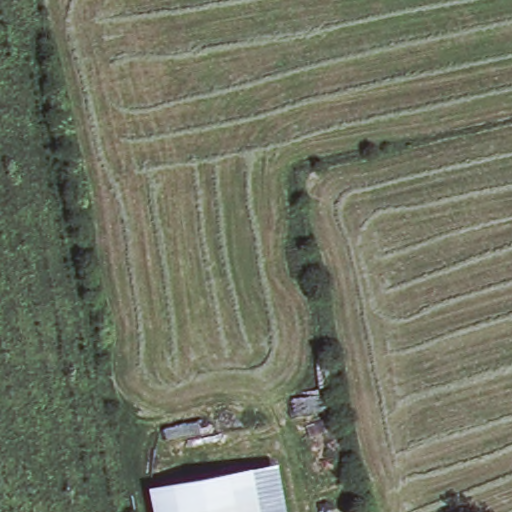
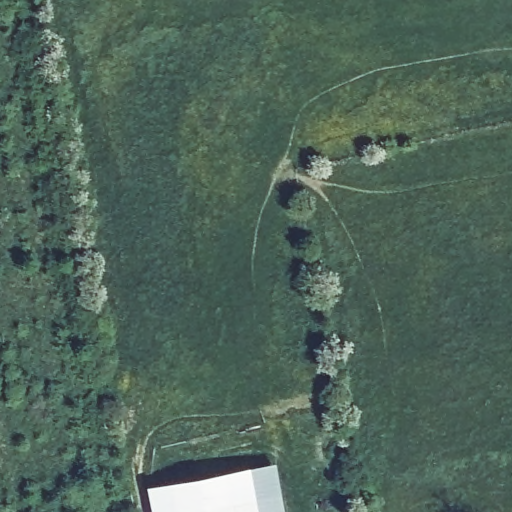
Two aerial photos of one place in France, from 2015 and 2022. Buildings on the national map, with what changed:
unchanged [(284,512),(260,512),(254,474),(275,470),(284,512)]
unchanged [(226,512),(221,480),(254,474),(260,512),(226,512)]
unchanged [(226,512),(194,512),(190,486),(221,480),(226,512)]
unchanged [(159,492),(190,486),(194,512),(157,512),(154,493),(159,492)]

